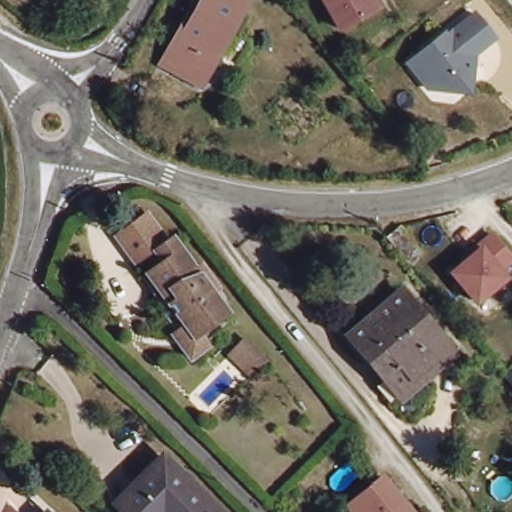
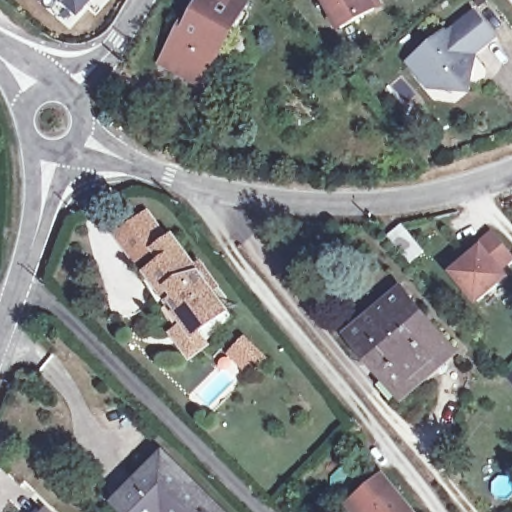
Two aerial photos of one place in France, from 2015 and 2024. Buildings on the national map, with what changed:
new [(63,0),(89,0),(78,13),(63,0)]
unchanged [(209,0),(241,0),(252,5),(220,62),(222,63),(208,90),(177,73),(171,69),(179,55),(209,0)]
unchanged [(378,0),(381,5),(377,7),(342,27),(326,0),(378,0)]
unchanged [(420,54),(447,31),(449,34),(476,11),(497,36),(470,59),(476,65),(473,79),(460,91),(429,87),(410,62),(420,54)]
unchanged [(167,259),(147,273),(128,245),(158,224),(177,251),(167,259)]
unchanged [(424,250),(410,262),(388,235),(402,224),(424,250)]
unchanged [(480,249),(476,243),(493,229),(512,254),(512,266),(505,272),(511,279),(477,306),(449,273),(480,249)]
unchanged [(177,251),(184,247),(241,326),(207,350),(157,280),(174,268),(167,259),(177,251)]
unchanged [(207,350),(241,326),(202,366),(151,285),(157,280),(207,350)]
unchanged [(386,377),(350,334),(402,289),(455,351),(416,384),(402,396),(386,377)]
unchanged [(266,357),(253,369),(233,350),(245,337),(266,357)]
unchanged [(169,462),(219,512),(130,512),(125,507),(169,462)]
unchanged [(350,509),(384,481),(408,512),(352,512),(350,509)]

